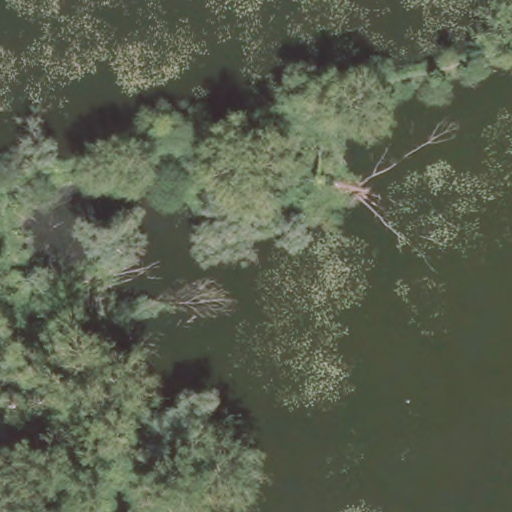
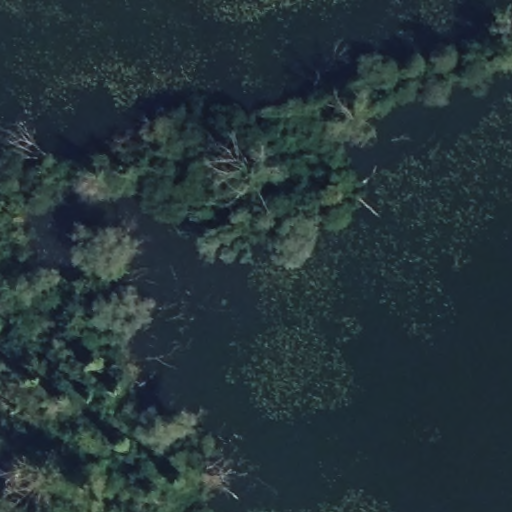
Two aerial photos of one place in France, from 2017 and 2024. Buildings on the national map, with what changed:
unchanged [(265,178),(297,170),(303,193),(271,204),(265,178)]

